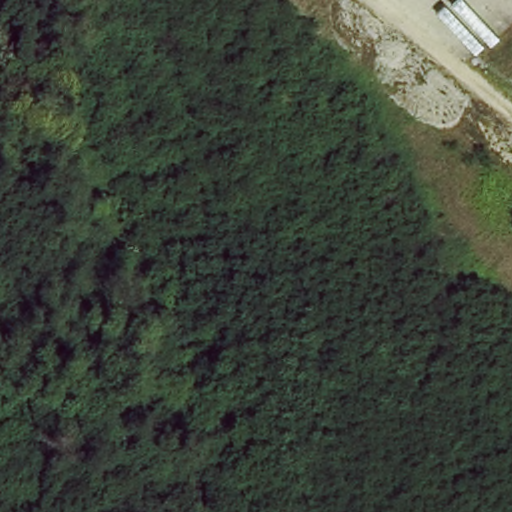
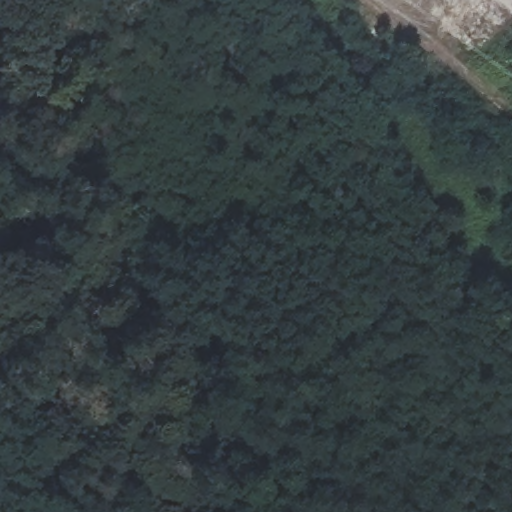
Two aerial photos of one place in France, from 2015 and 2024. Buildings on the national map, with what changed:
[]

